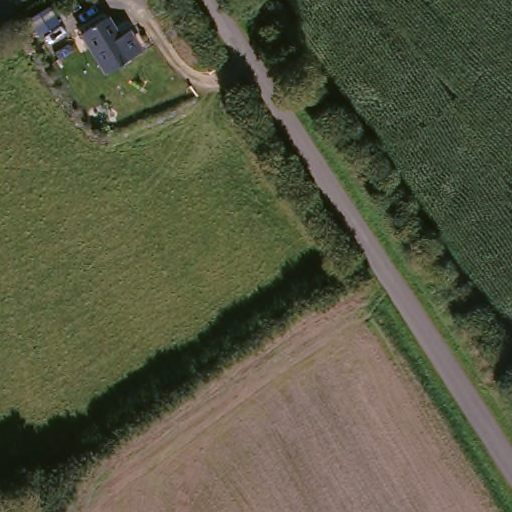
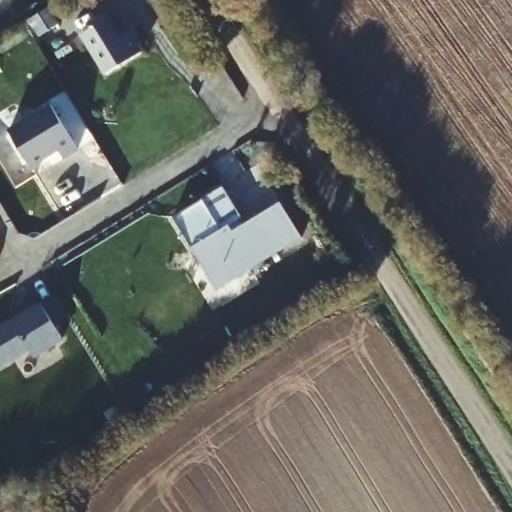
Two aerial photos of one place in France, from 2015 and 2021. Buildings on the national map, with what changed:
unchanged [(104,21),(116,39),(125,33),(139,53),(105,77),(77,40),(104,21)]
new [(50,105),(73,143),(79,151),(64,161),(58,153),(32,169),(8,130),(50,105)]
new [(221,183),(243,220),(282,199),(303,238),(214,288),(170,212),(202,194),(221,183)]
new [(39,306),(56,295),(70,320),(57,327),(64,339),(34,359),(29,351),(0,368),(0,329),(39,306)]

